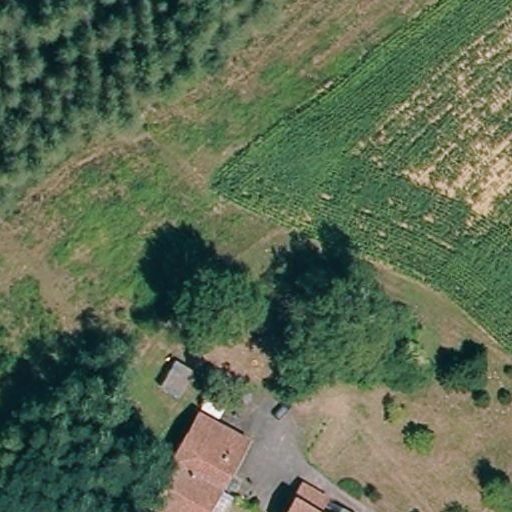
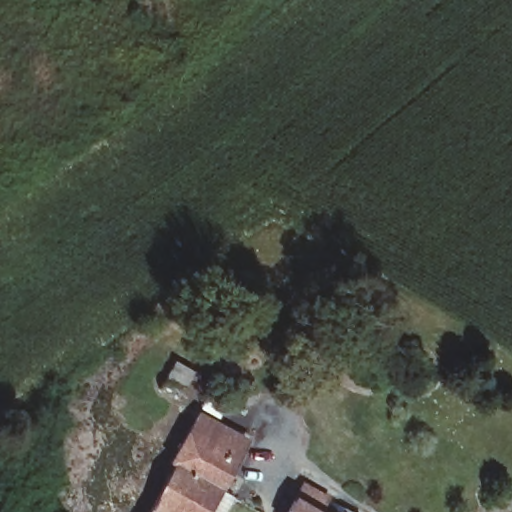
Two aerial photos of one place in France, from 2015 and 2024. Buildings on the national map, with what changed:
unchanged [(175,364),(199,372),(180,415),(157,402),(175,364)]
unchanged [(201,413),(250,442),(239,463),(191,434),(201,413)]
unchanged [(175,462),(191,434),(239,463),(225,489),(214,512),(156,512),(181,467),(175,462)]
unchanged [(326,501),(320,512),(294,512),(306,488),(326,501)]
unchanged [(240,499),(234,512),(214,512),(225,489),(240,499)]
unchanged [(346,512),(345,512),(345,511),(346,512)]

